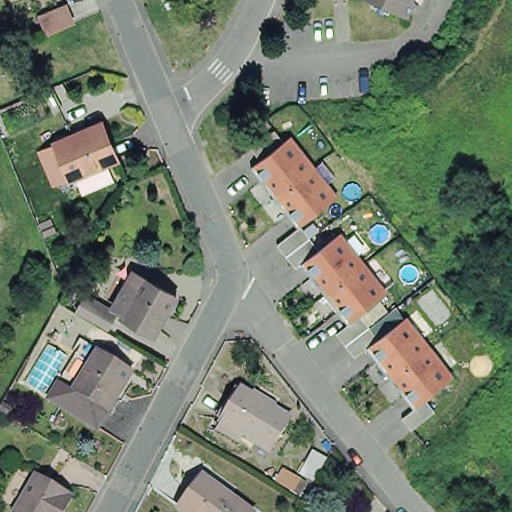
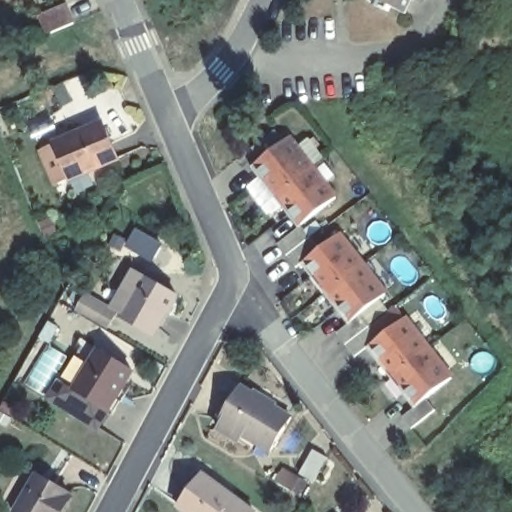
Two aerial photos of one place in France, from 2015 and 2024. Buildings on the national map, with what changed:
unchanged [(395,2),(392,7),(377,0),(412,0),(408,9),(395,2)]
unchanged [(53,146),(66,140),(66,139),(110,121),(124,155),(80,173),(67,179),(53,146)]
unchanged [(301,224),(316,245),(340,228),(390,290),(360,315),(375,333),(401,314),(451,376),(425,400),(435,408),(412,427),(402,413),(410,405),(366,351),(357,357),(335,328),(343,322),(301,266),(295,270),(274,242),(295,225),(252,164),(257,159),(250,147),(275,127),(280,137),(290,129),(340,196),(301,224)]
unchanged [(176,321),(145,303),(133,297),(143,277),(153,258),(165,265),(197,282),(176,321)]
unchanged [(100,300),(96,297),(106,282),(109,285),(135,302),(126,316),(100,300)]
unchanged [(65,410),(51,402),(62,384),(87,345),(100,353),(135,375),(110,414),(99,432),(65,410)]
unchanged [(216,426),(220,418),(218,417),(239,384),(290,416),(268,450),(242,432),(238,440),(216,426)]
unchanged [(48,512),(5,512),(7,507),(25,476),(27,473),(60,492),(48,512)]
unchanged [(177,506),(201,473),(254,512),(186,512),(177,506)]

